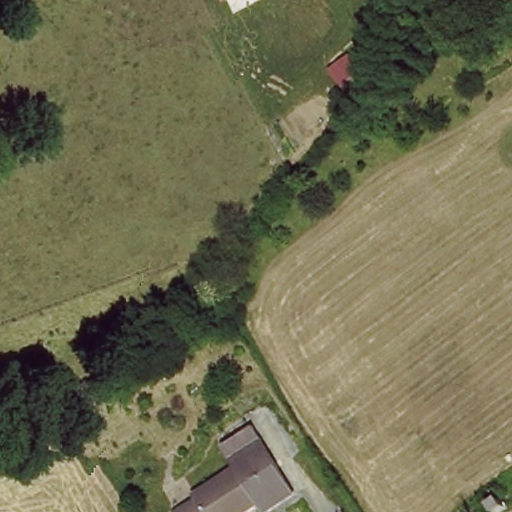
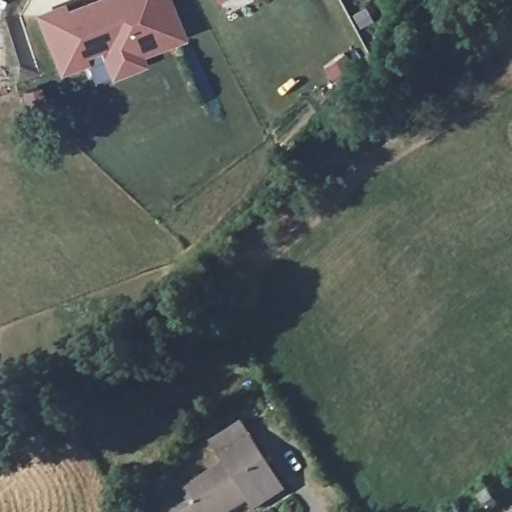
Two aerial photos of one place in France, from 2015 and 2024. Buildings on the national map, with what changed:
new [(65,5),(68,10),(91,0),(169,0),(186,40),(142,58),(146,67),(112,80),(100,53),(87,58),(89,65),(61,76),(37,16),(65,5)]
unchanged [(217,2),(216,0),(220,0),(217,2)]
unchanged [(291,496),(260,512),(254,501),(233,512),(175,512),(171,503),(190,493),(188,489),(236,465),(231,454),(262,438),(291,496)]

